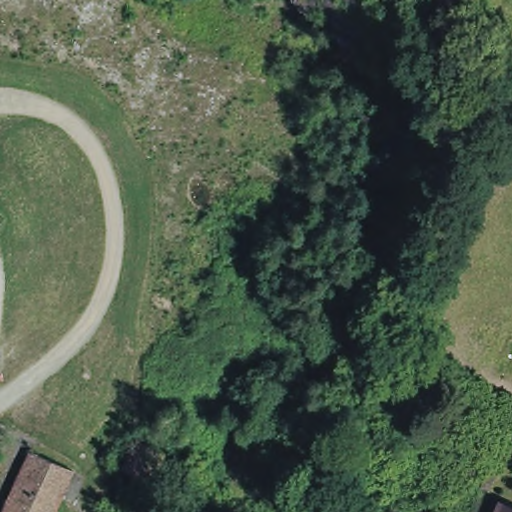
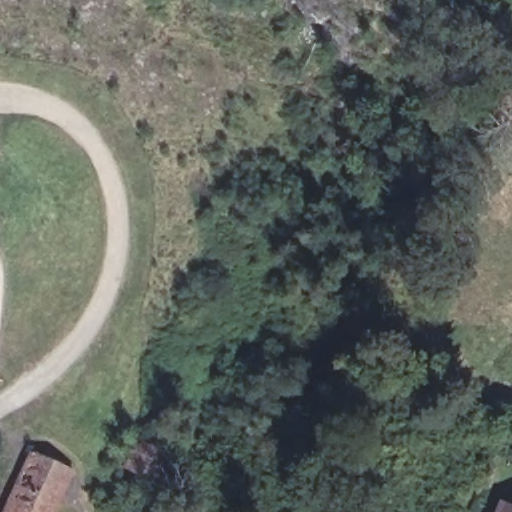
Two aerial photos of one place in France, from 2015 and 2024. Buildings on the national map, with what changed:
unchanged [(72,470),(65,484),(52,512),(4,512),(25,466),(31,451),(72,470)]
unchanged [(153,453),(185,469),(168,502),(136,485),(153,453)]

